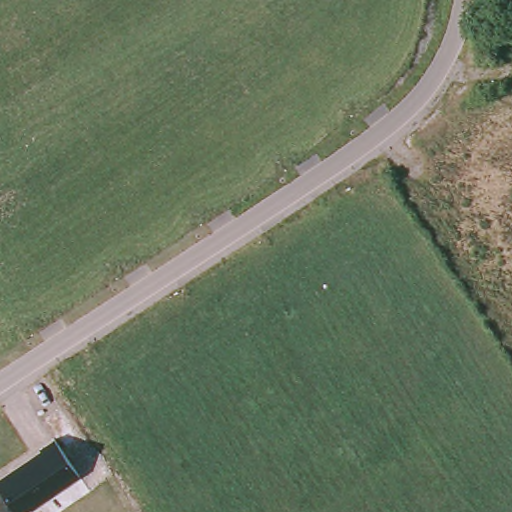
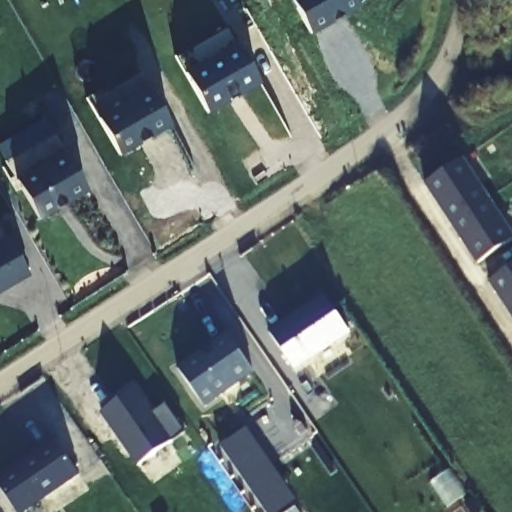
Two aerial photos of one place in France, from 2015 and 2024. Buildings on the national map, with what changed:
new [(360,5),(310,34),(291,0),(356,0),(360,5)]
new [(260,83),(209,114),(175,60),(227,30),(260,83)]
new [(150,140),(146,132),(137,137),(141,145),(120,157),(87,99),(92,95),(95,100),(141,74),(172,127),(150,140)]
new [(65,152),(87,190),(39,219),(16,180),(65,152)]
new [(512,238),(477,260),(425,181),(462,158),(512,234),(512,238)]
new [(7,236),(30,276),(0,293),(0,240),(7,236)]
new [(512,264),(512,316),(489,279),(512,264)]
new [(324,296),(348,332),(293,369),(269,332),(324,296)]
new [(227,334),(252,371),(203,406),(177,368),(227,334)]
new [(137,387),(155,411),(165,405),(185,433),(135,466),(100,413),(137,387)]
new [(292,499),(273,512),(265,512),(219,446),(244,429),(292,499)]
new [(79,476),(26,512),(16,512),(0,489),(0,476),(55,440),(79,476)]

